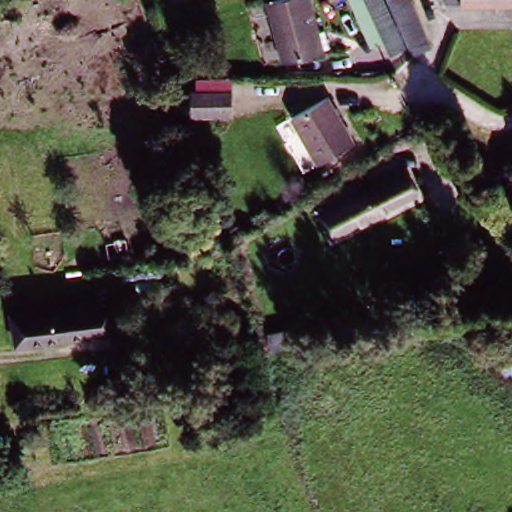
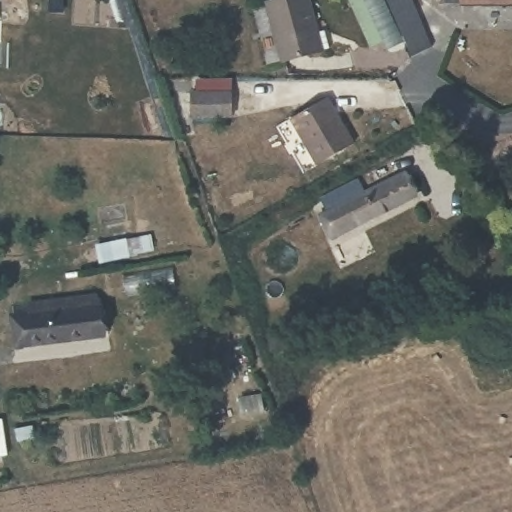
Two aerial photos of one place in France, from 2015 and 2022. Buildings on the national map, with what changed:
unchanged [(279,57),(264,0),(305,0),(312,28),(317,45),(310,47),(279,57)]
unchanged [(387,1),(389,0),(411,0),(431,47),(411,55),(407,48),(388,57),(382,43),(370,48),(348,0),(386,0),(387,1)]
unchanged [(446,0),(512,0),(512,7),(446,7),(446,0)]
unchanged [(189,96),(229,94),(230,120),(190,121),(189,96)]
unchanged [(289,120),(325,97),(352,142),(316,165),(289,120)]
unchanged [(333,214),(397,176),(412,202),(349,241),(333,214)]
unchanged [(13,347),(10,318),(28,316),(27,304),(76,298),(77,301),(97,299),(101,335),(13,347)]

